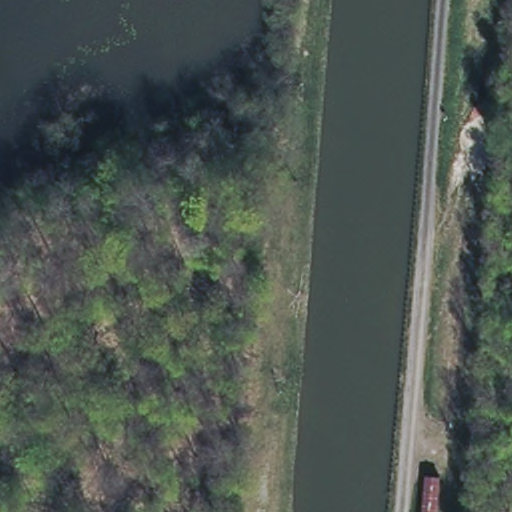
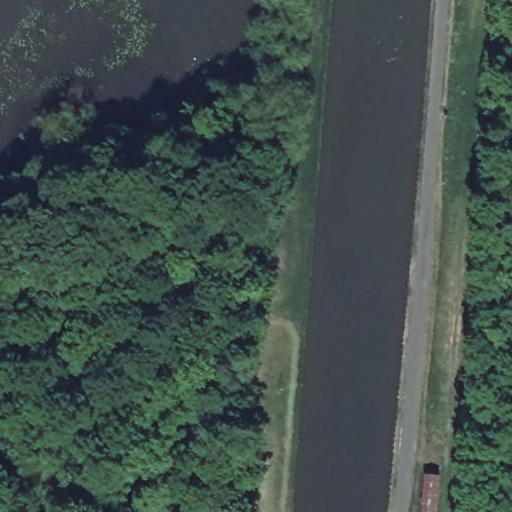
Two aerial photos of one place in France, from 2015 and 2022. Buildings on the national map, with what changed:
unchanged [(438,483),(434,512),(416,512),(422,482),(438,483)]

